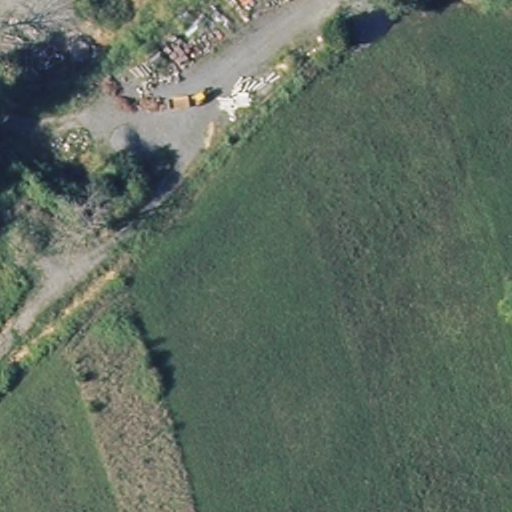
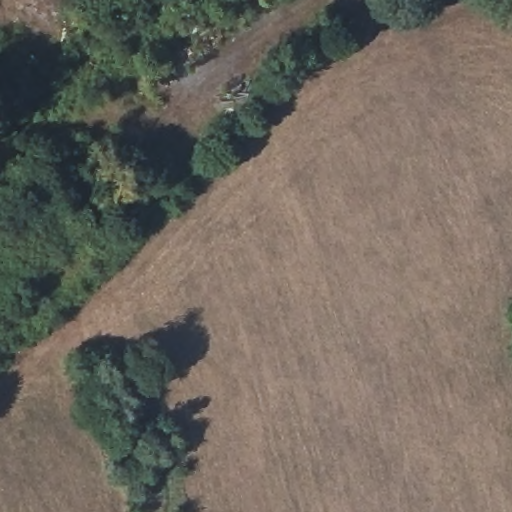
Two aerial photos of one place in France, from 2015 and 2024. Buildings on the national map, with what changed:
[]

